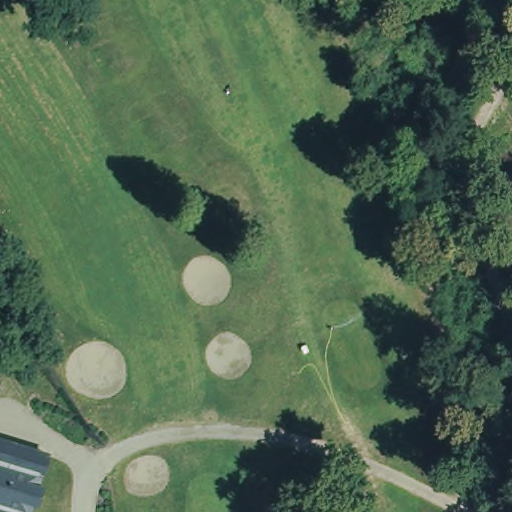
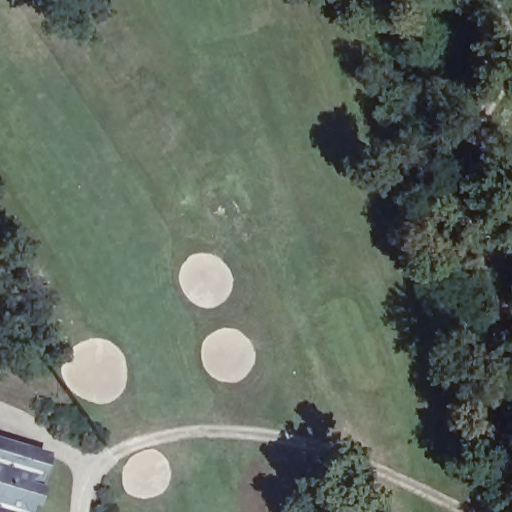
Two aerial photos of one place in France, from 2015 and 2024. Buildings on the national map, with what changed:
unchanged [(23,512),(0,512),(0,447),(41,460),(35,483),(32,482),(23,512)]

